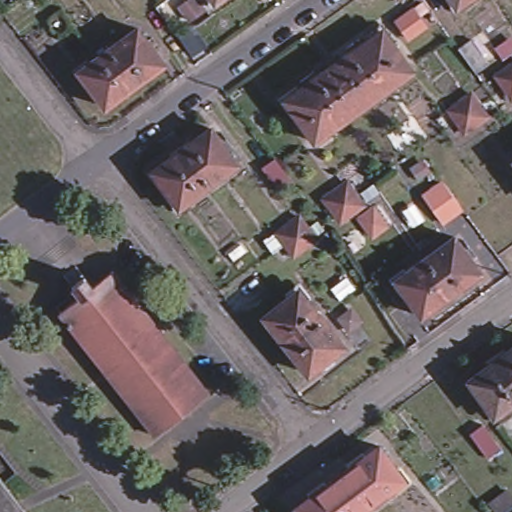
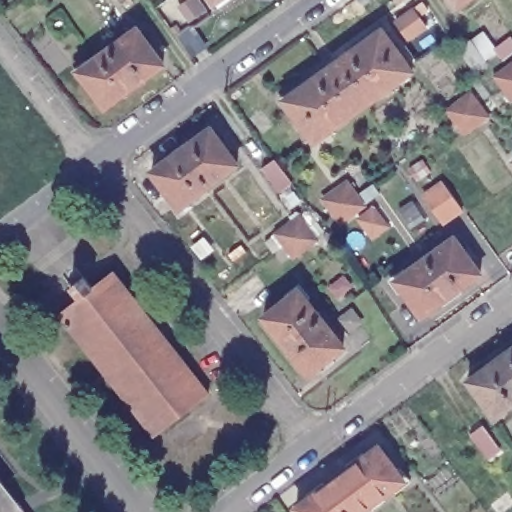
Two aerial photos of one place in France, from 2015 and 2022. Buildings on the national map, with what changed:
unchanged [(218,6),(213,0),(226,0),(218,6)]
unchanged [(456,11),(448,0),(471,0),(456,11)]
unchanged [(314,141),(283,99),(381,28),(412,71),(314,141)]
unchanged [(138,30),(164,66),(143,81),(146,84),(128,97),(125,94),(105,109),(79,72),(138,30)]
unchanged [(213,127),(240,163),(181,206),(155,170),(213,127)]
unchanged [(347,185),(355,196),(363,207),(341,224),(333,212),(324,201),(347,185)]
unchanged [(444,224),(426,199),(446,185),(464,209),(444,224)]
unchanged [(300,219),(308,230),(309,230),(316,242),(294,257),(286,247),(278,235),(300,219)]
unchanged [(445,308),(442,303),(421,318),(395,282),(454,240),(480,276),(459,291),(463,295),(445,308)]
unchanged [(60,309),(80,293),(72,282),(85,272),(93,283),(115,267),(209,391),(156,432),(60,309)]
unchanged [(299,291),(344,348),(309,376),(264,319),(299,291)]
unchanged [(512,405),(497,416),(471,382),(512,351),(512,405)]
unchanged [(404,482),(365,512),(298,512),(297,510),(379,450),(404,482)]
unchanged [(25,506),(17,512),(0,512),(0,474),(25,506)]
unchanged [(30,512),(17,512),(25,506),(30,512)]

